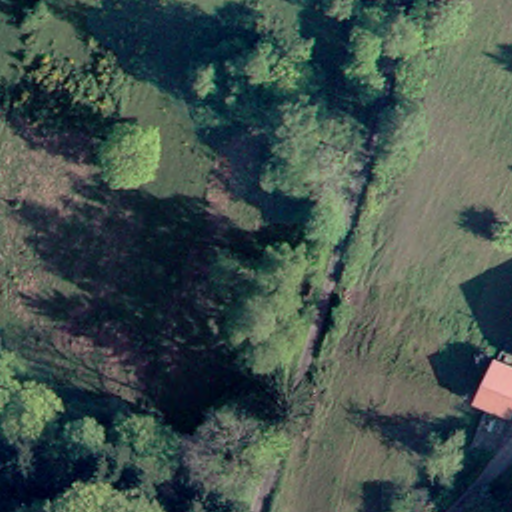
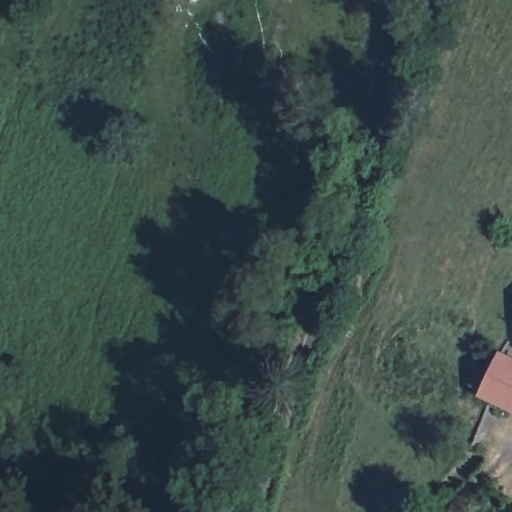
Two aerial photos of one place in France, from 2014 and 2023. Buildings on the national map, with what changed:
unchanged [(512,366),(512,399),(509,406),(477,392),(493,357),(512,366)]

